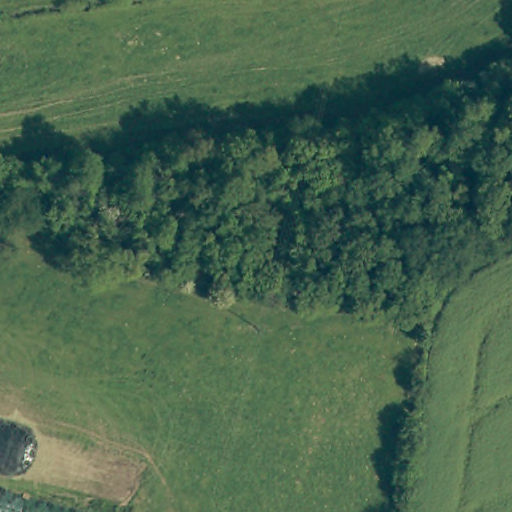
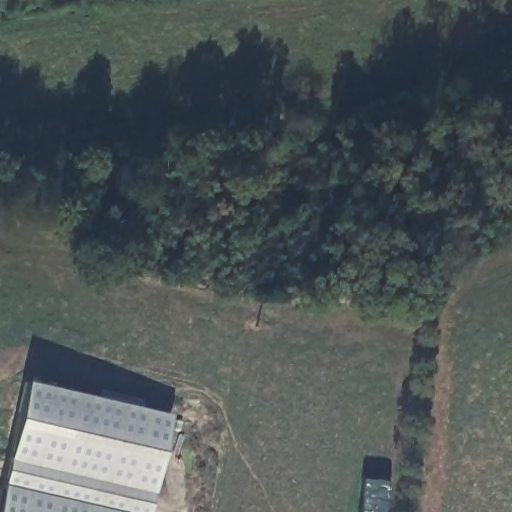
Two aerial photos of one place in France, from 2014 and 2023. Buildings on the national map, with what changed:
new [(172,415),(149,512),(0,512),(0,485),(24,380),(172,415)]

